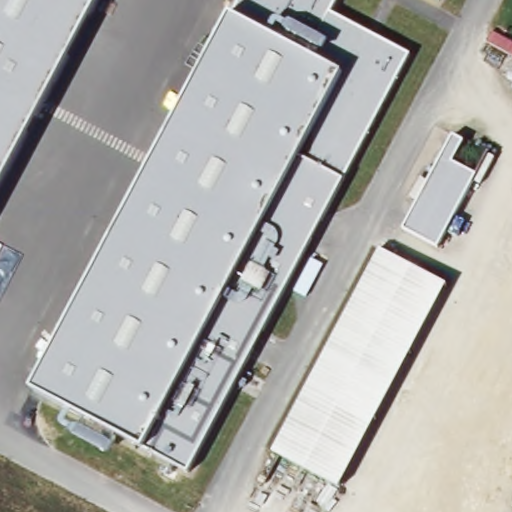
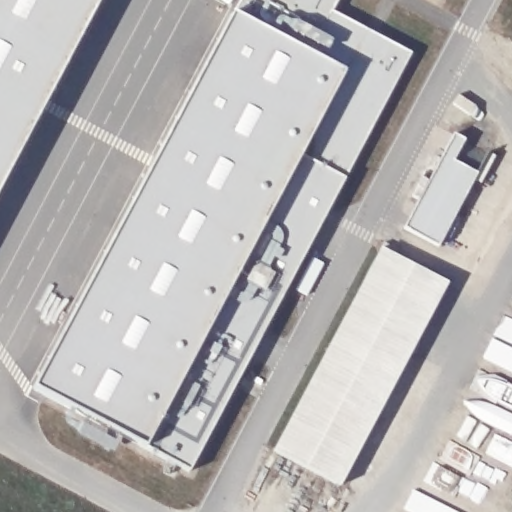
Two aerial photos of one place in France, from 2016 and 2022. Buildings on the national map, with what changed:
unchanged [(0,191),(0,0),(100,0),(0,191)]
unchanged [(241,0),(336,0),(331,11),(308,54),(235,15),(241,0)]
unchanged [(308,54),(331,11),(410,55),(189,475),(31,391),(235,15),(308,54)]
unchanged [(470,108),(482,115),(456,162),(475,172),(437,245),(406,229),(470,108)]
unchanged [(392,255),(459,290),(353,490),(286,455),(392,255)]

